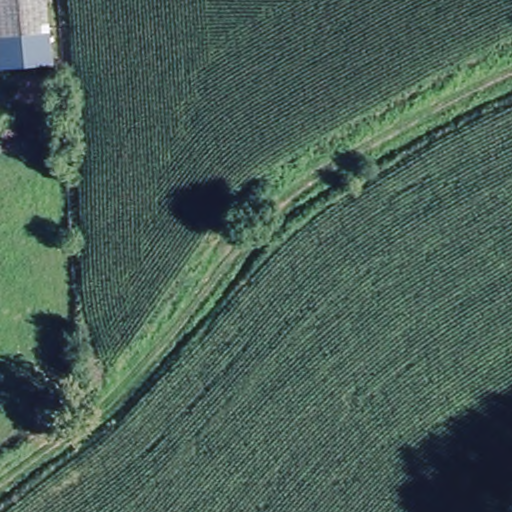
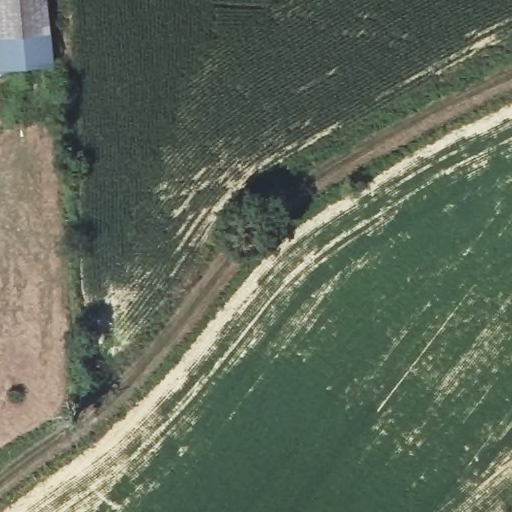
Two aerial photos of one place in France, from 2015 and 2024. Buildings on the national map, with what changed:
unchanged [(0,70),(0,0),(46,0),(51,66),(0,70)]

